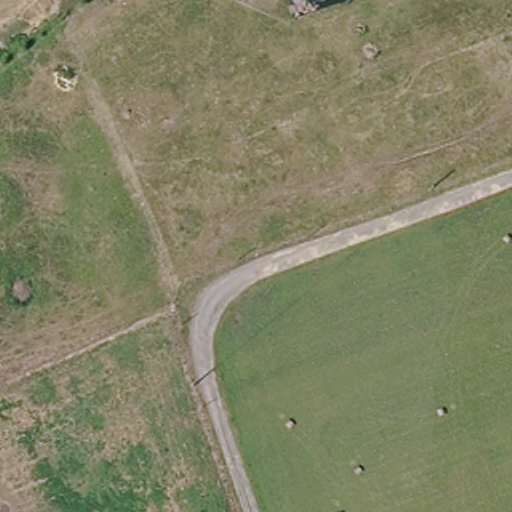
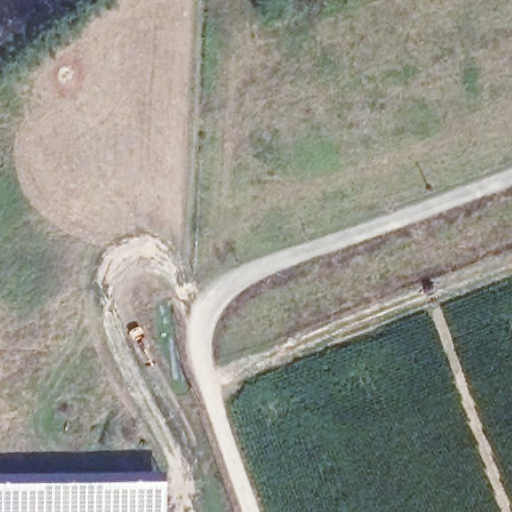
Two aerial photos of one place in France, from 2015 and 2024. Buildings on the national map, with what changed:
new [(163,512),(0,512),(0,483),(163,480),(163,512)]

